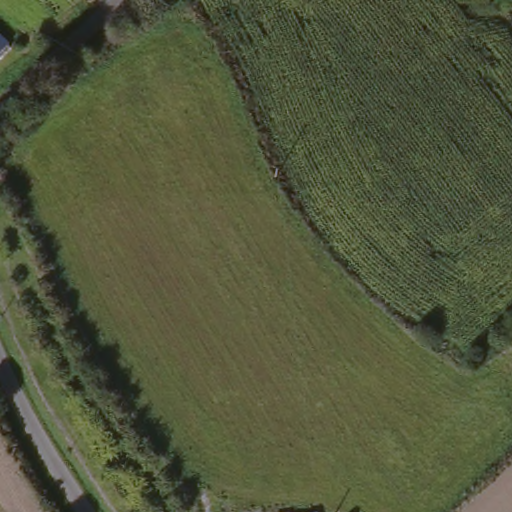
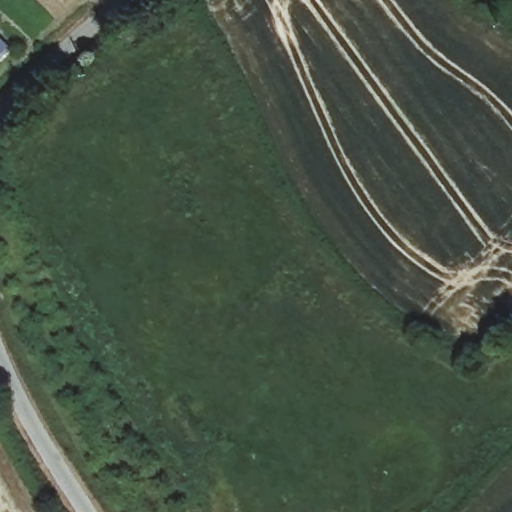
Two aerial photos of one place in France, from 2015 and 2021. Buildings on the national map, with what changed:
unchanged [(0,58),(0,29),(15,44),(0,58)]

